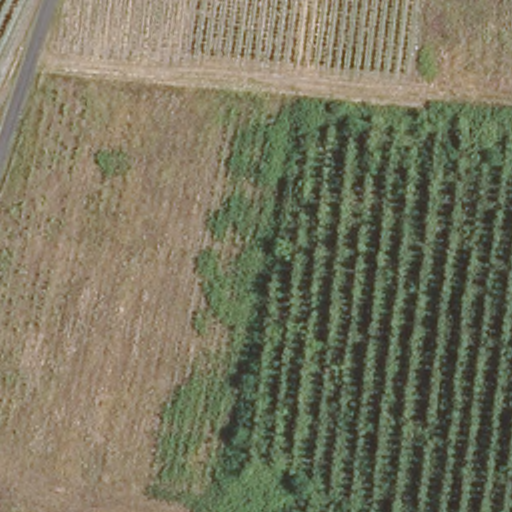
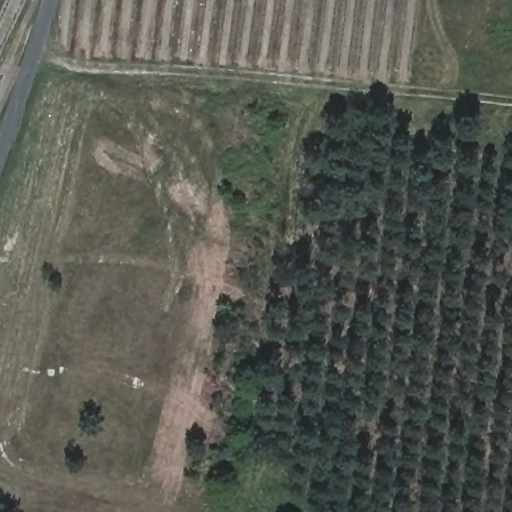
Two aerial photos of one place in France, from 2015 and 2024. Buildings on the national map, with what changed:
[]

